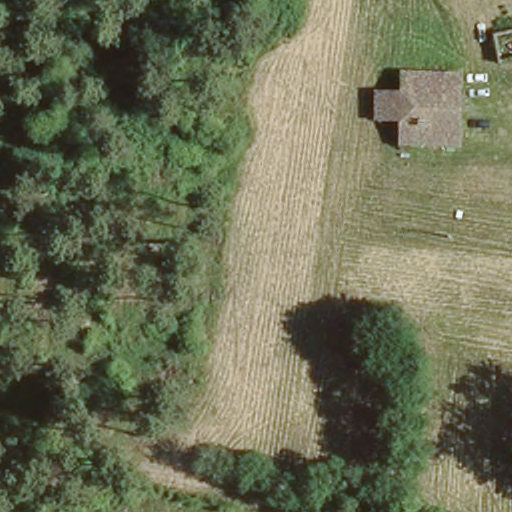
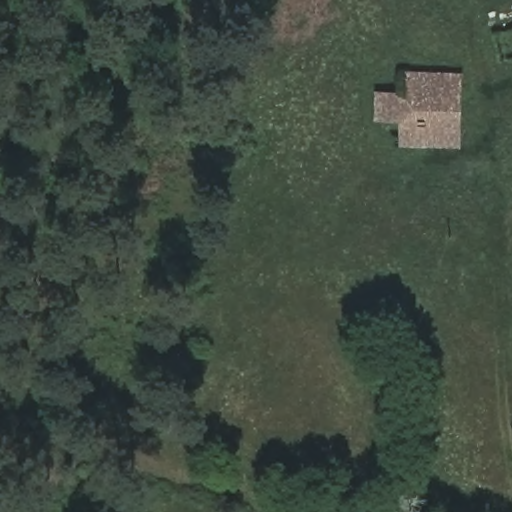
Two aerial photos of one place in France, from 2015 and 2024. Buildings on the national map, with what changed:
unchanged [(459,138),(397,135),(398,110),(379,109),(379,86),(398,86),(398,69),(459,71),(459,75),(459,138)]

